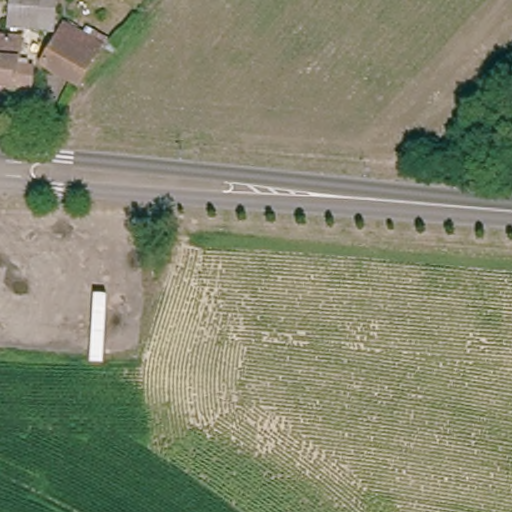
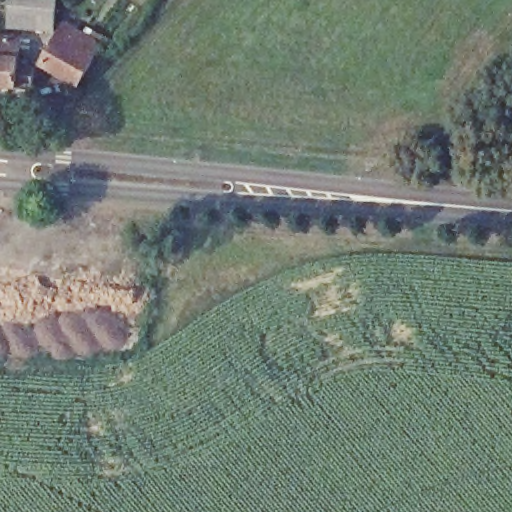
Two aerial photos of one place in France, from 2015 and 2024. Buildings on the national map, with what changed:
unchanged [(44,0),(66,1),(64,31),(63,34),(0,28),(0,14),(21,16),(21,8),(21,0),(44,0)]
unchanged [(84,90),(52,70),(73,36),(106,54),(84,90)]
unchanged [(31,45),(29,70),(40,71),(38,94),(25,93),(25,100),(0,97),(0,42),(31,45)]

